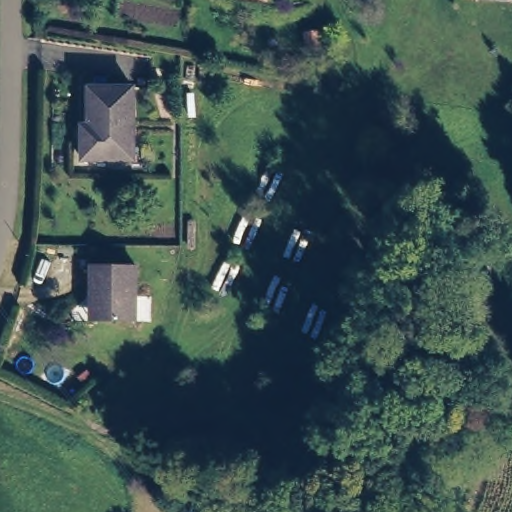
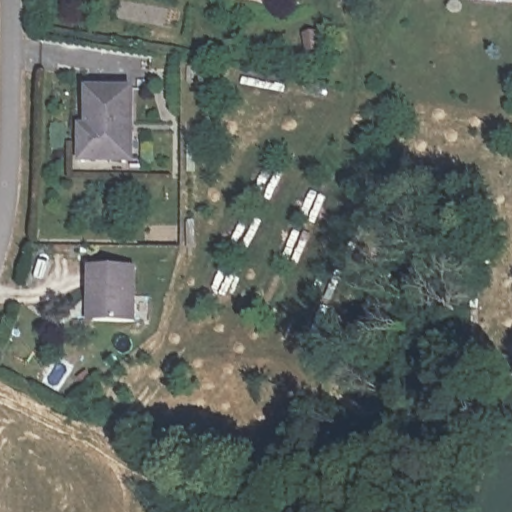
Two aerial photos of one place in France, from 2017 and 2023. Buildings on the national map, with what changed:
unchanged [(82,155),(81,134),(88,134),(89,85),(140,90),(137,159),(82,155)]
unchanged [(96,291),(97,265),(142,268),(144,322),(105,319),(95,318),(96,291)]

